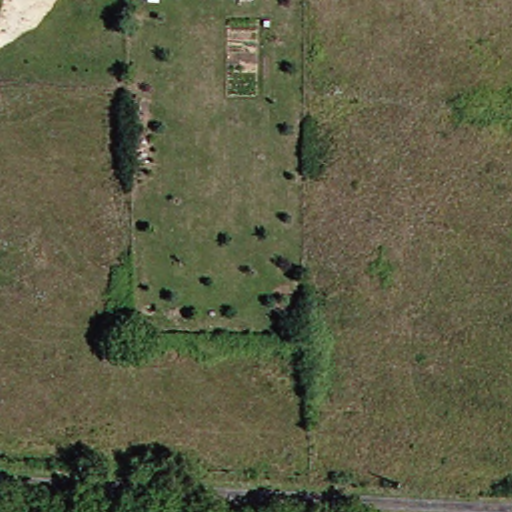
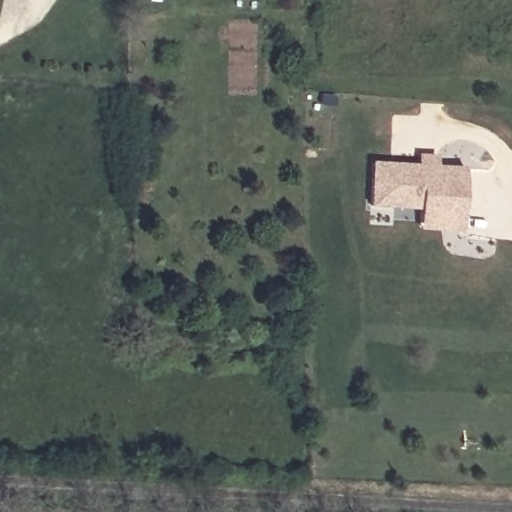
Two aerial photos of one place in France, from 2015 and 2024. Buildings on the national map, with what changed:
new [(418,229),(419,210),(369,207),(373,161),(464,168),(461,231),(418,229)]

